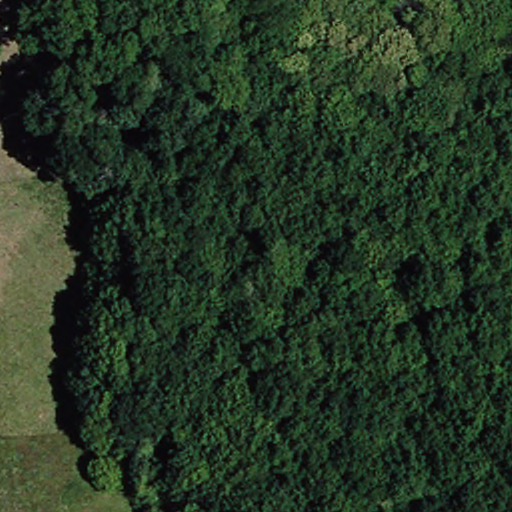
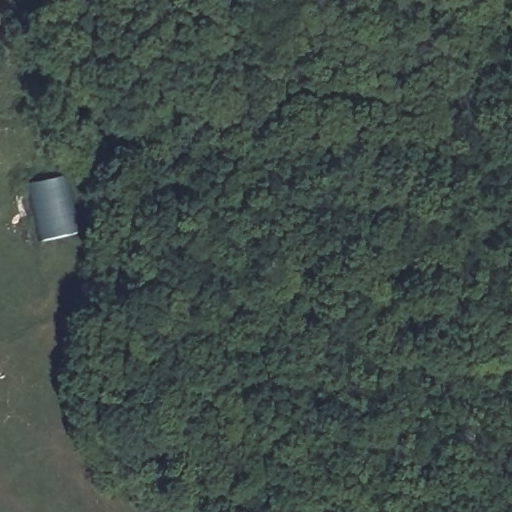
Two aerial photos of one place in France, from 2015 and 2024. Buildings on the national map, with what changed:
new [(43,241),(28,184),(65,176),(78,233),(43,241)]

